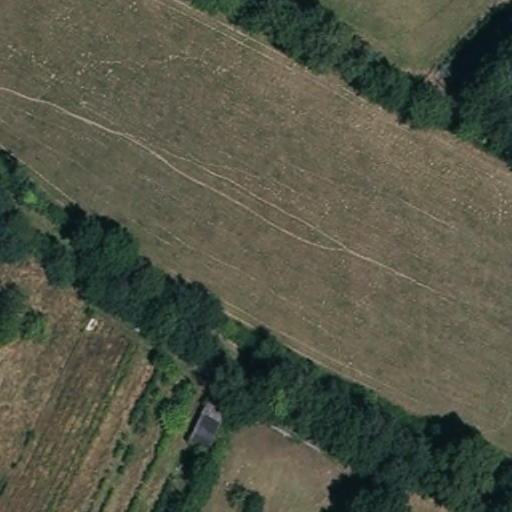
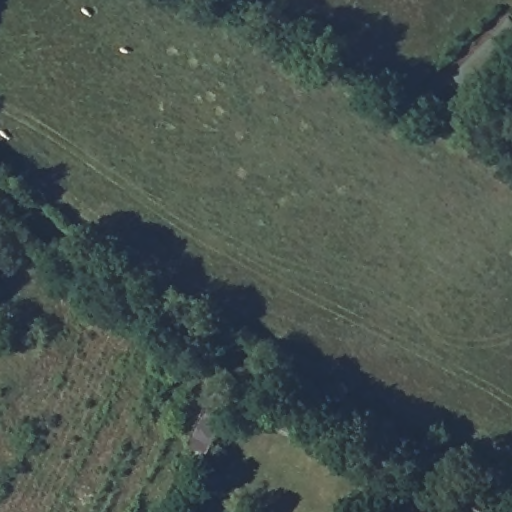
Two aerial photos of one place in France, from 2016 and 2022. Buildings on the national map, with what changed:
unchanged [(214,388),(233,398),(203,455),(182,445),(214,388)]

